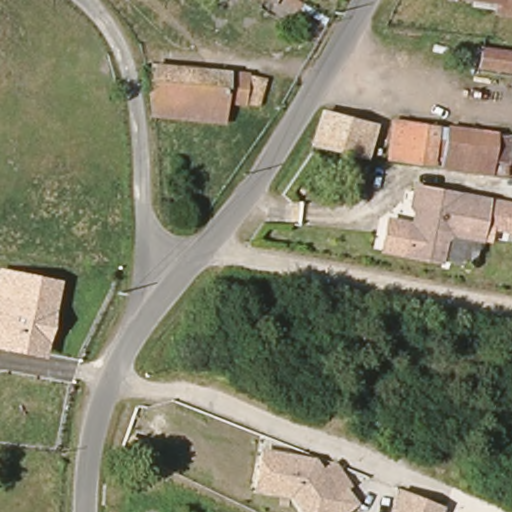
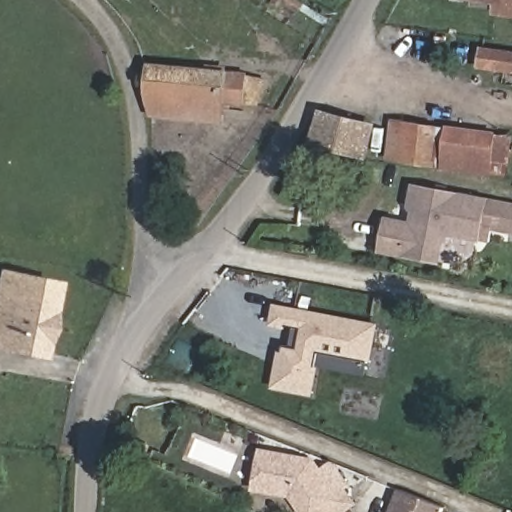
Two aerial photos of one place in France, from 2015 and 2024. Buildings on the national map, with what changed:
unchanged [(512,8),(505,7),(505,2),(493,0),(512,0),(512,8)]
unchanged [(512,55),(512,70),(485,66),(487,51),(512,55)]
unchanged [(261,82),(257,106),(225,103),(222,125),(155,117),(152,69),(261,82)]
unchanged [(325,118),(369,126),(364,154),(309,144),(325,118)]
unchanged [(390,156),(395,122),(447,128),(441,162),(390,156)]
unchanged [(447,128),(511,135),(509,159),(493,157),(490,169),(441,162),(447,128)]
unchanged [(477,231),(449,227),(440,233),(436,255),(380,245),(385,215),(410,219),(412,206),(408,200),(411,180),(512,199),(512,224),(480,218),(477,231)]
unchanged [(0,347),(0,305),(5,278),(25,281),(51,286),(49,300),(40,353),(0,347)]
new [(272,323),(276,304),(379,323),(370,370),(359,368),(358,374),(320,367),(314,397),(271,388),(280,344),(301,348),(300,329),(272,323)]
unchanged [(306,510),(293,492),(256,484),(265,447),(315,460),(321,467),(333,458),(348,479),(306,510)]
unchanged [(441,512),(387,512),(395,487),(444,503),(441,512)]

